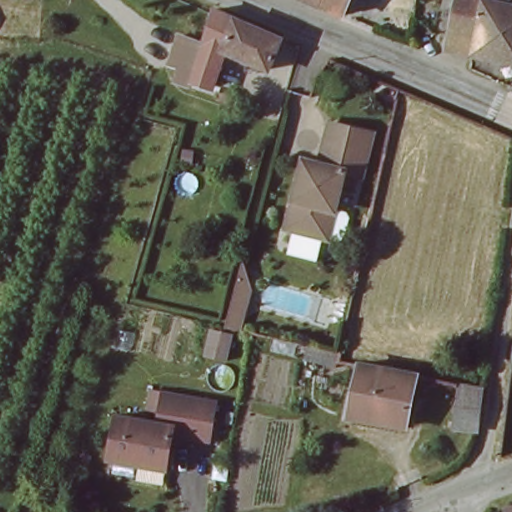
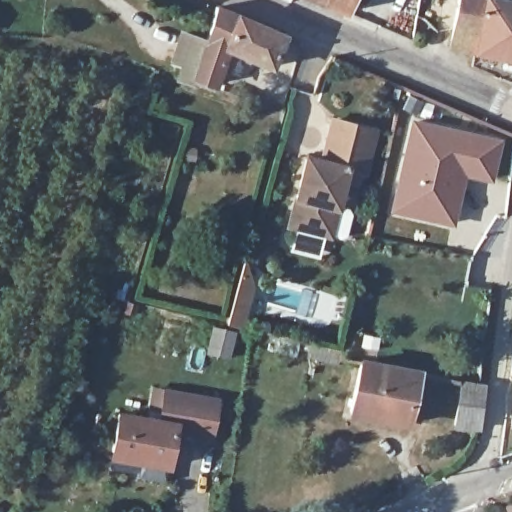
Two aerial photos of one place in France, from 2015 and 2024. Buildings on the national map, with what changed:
unchanged [(340,10),(315,0),(345,0),(340,10)]
unchanged [(461,0),(484,0),(512,6),(512,62),(451,48),(461,0)]
unchanged [(284,32),(271,65),(231,46),(218,83),(196,75),(210,30),(217,5),(284,32)]
new [(207,40),(196,75),(198,76),(194,86),(174,80),(178,65),(169,63),(179,30),(207,40)]
unchanged [(284,223),(301,155),(318,159),(328,117),(369,128),(359,170),(356,170),(352,184),(338,180),(324,232),(284,223)]
new [(502,139),(492,183),(467,176),(454,227),(390,213),(411,120),(502,139)]
new [(216,321),(234,257),(246,260),(256,288),(243,329),(216,321)]
unchanged [(422,371),(413,422),(351,411),(363,360),(422,371)]
unchanged [(478,429),(454,424),(462,380),(486,385),(478,429)]
unchanged [(118,412),(159,420),(164,391),(216,400),(208,436),(173,430),(166,465),(139,460),(141,456),(111,450),(118,412)]
unchanged [(510,512),(509,509),(512,508),(512,512),(510,512)]

